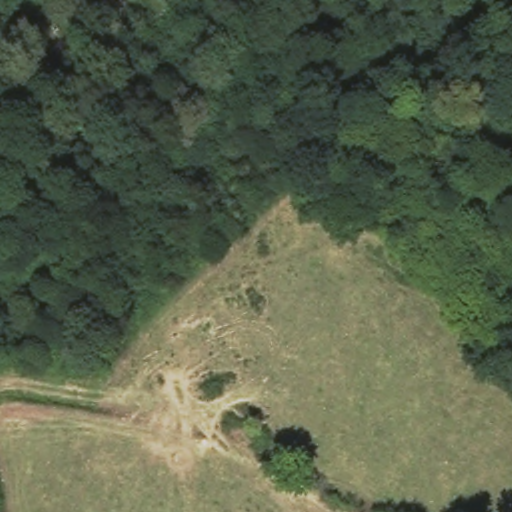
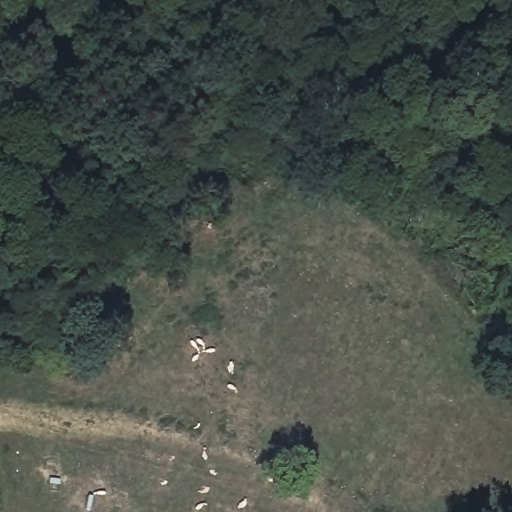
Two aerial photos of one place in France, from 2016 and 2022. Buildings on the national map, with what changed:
unchanged [(252,320),(246,331),(228,326),(236,312),(252,320)]

